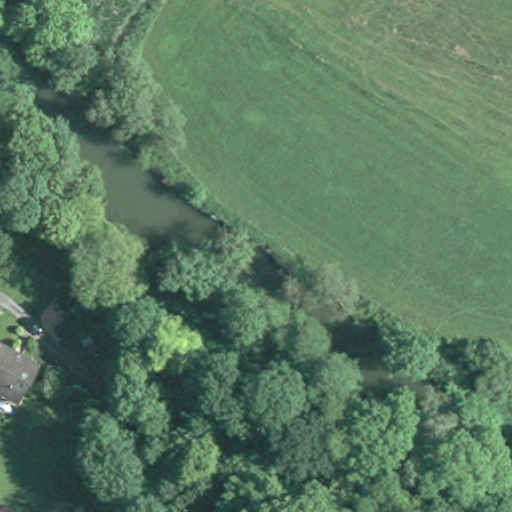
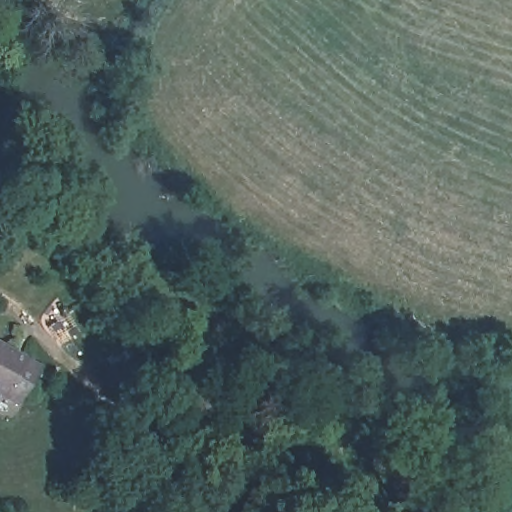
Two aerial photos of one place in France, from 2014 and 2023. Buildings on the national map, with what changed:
unchanged [(0,345),(34,363),(20,390),(14,401),(0,393),(0,345)]

